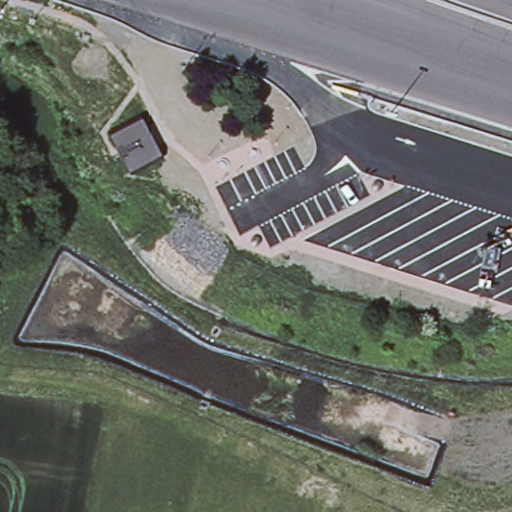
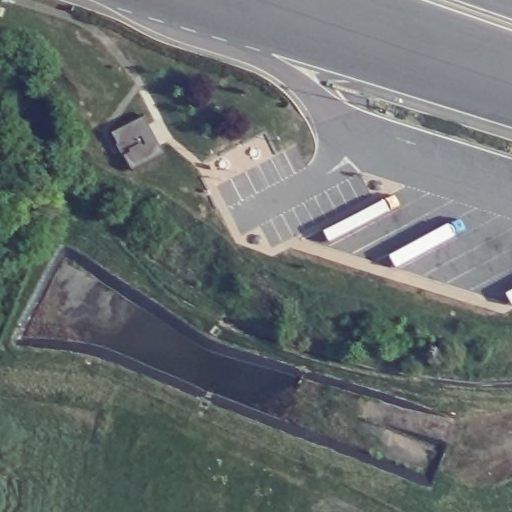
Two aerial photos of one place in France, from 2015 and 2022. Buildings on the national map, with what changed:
unchanged [(128,169),(108,132),(141,115),(160,152),(128,169)]

